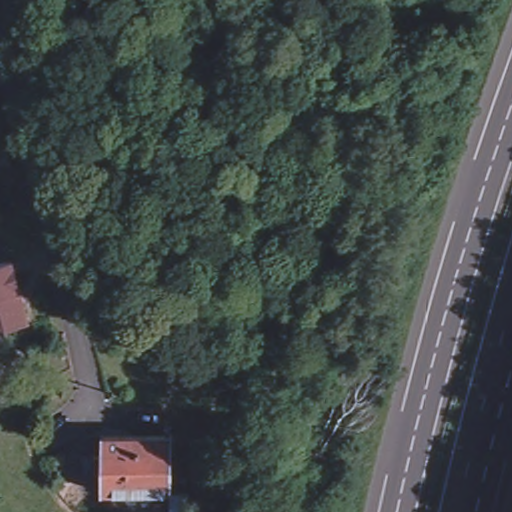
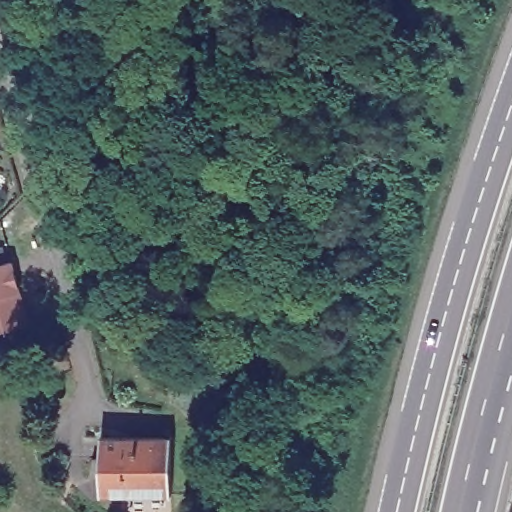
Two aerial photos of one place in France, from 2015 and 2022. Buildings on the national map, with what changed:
unchanged [(0,333),(0,266),(12,262),(27,321),(23,327),(0,333)]
unchanged [(104,437),(104,438),(170,439),(170,437),(173,437),(172,496),(170,496),(170,495),(104,493),(104,495),(102,495),(102,437),(104,437)]

